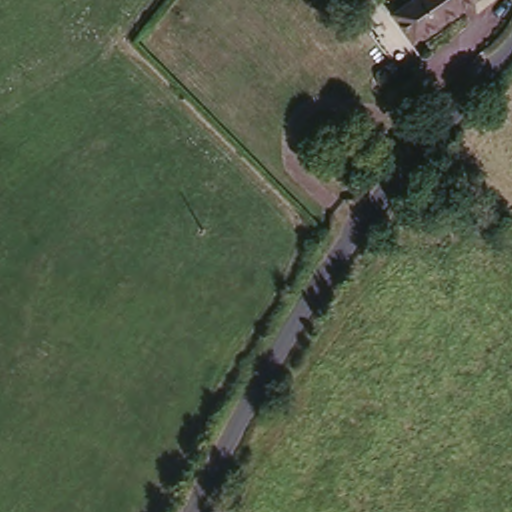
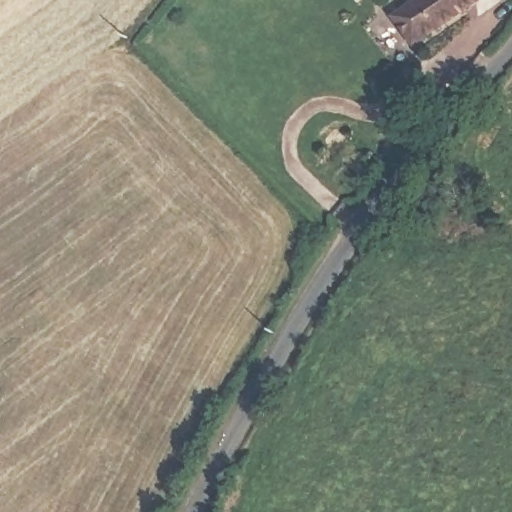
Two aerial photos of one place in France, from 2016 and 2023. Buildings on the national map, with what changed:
unchanged [(476,5),(421,46),(403,20),(430,0),(482,0),(476,5)]

